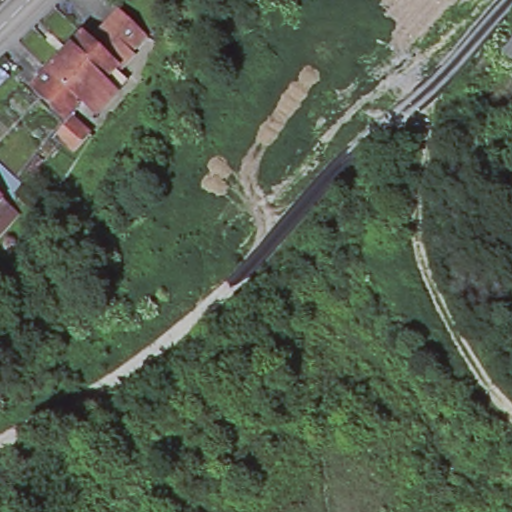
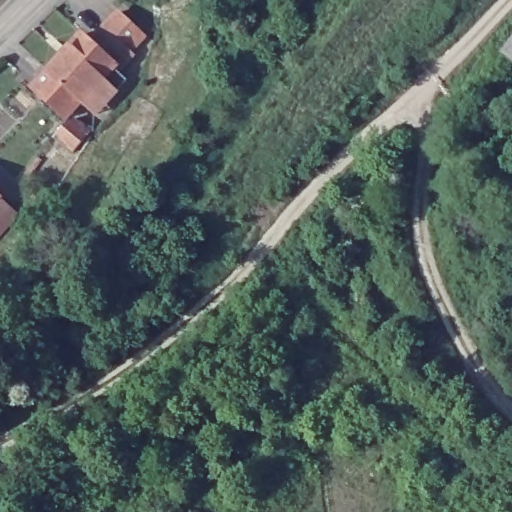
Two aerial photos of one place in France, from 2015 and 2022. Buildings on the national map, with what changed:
unchanged [(85,99),(70,117),(34,85),(82,32),(91,40),(105,25),(119,11),(143,34),(131,48),(117,63),(115,65),(128,77),(97,111),(85,99)]
unchanged [(512,43),(512,59),(504,53),(512,43)]
unchanged [(75,117),(88,128),(77,140),(64,128),(75,117)]
unchanged [(17,189),(2,207),(11,215),(0,228),(0,174),(17,189)]

